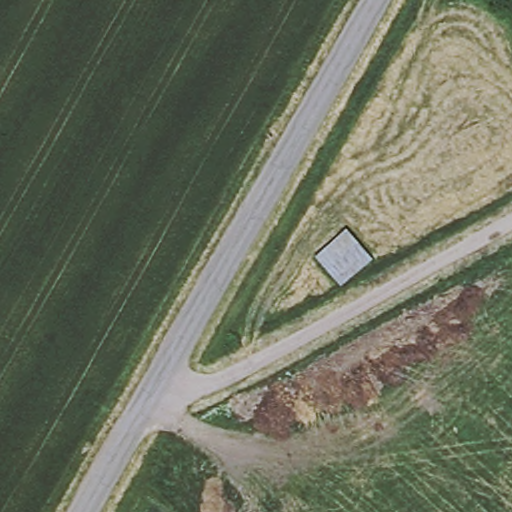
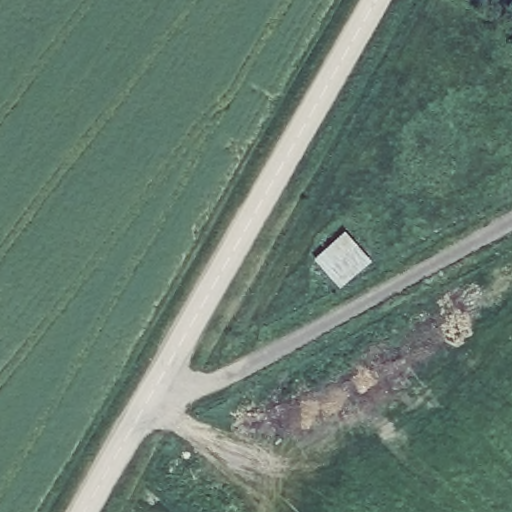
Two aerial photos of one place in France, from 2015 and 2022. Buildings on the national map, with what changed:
unchanged [(313,258),(341,235),(370,263),(339,286),(313,258)]

